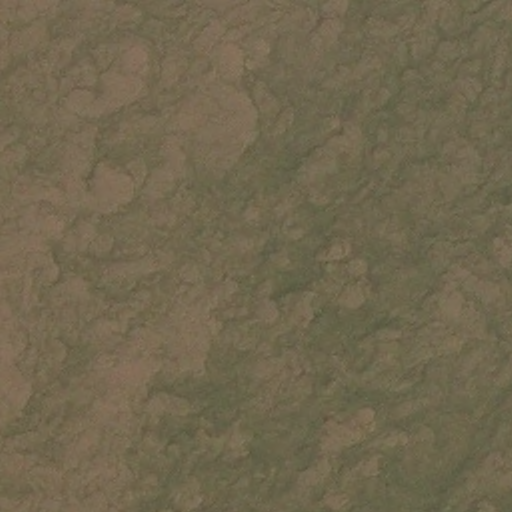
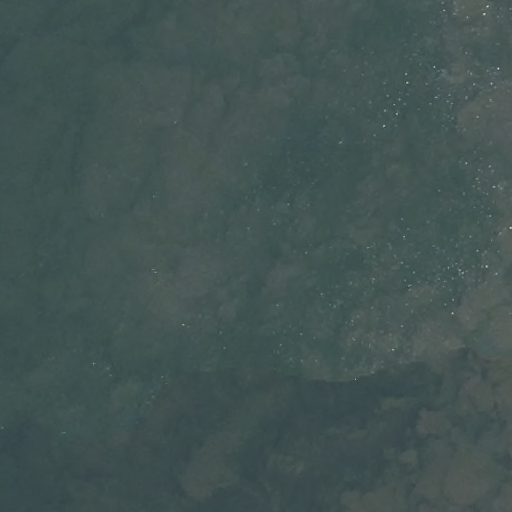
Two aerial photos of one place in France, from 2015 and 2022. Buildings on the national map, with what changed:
[]

